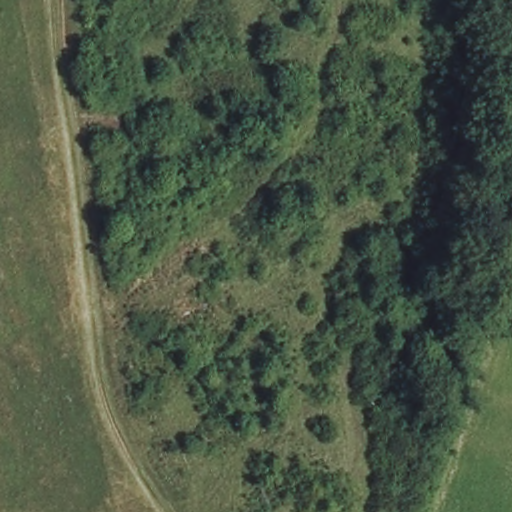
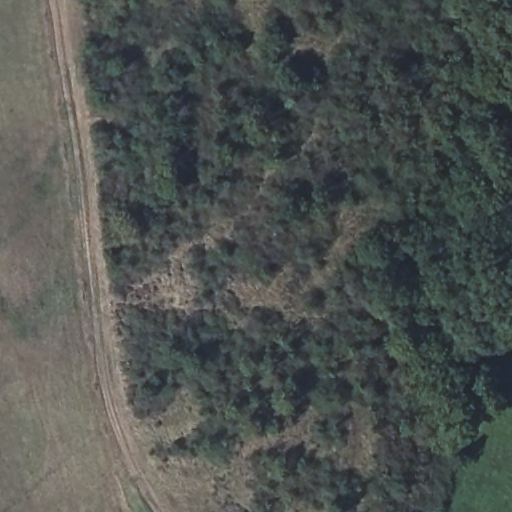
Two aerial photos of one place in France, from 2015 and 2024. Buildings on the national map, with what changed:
[]

